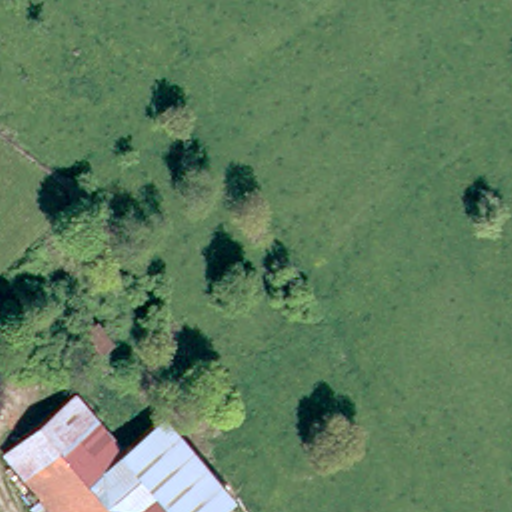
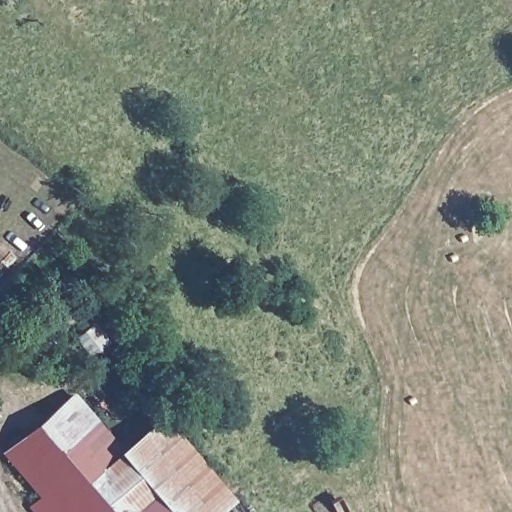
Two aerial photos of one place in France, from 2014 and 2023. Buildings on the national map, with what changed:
unchanged [(84,312),(88,309),(100,324),(103,326),(99,330),(85,342),(82,340),(70,325),(84,312)]
unchanged [(47,512),(0,457),(0,454),(67,397),(117,455),(167,512),(47,512)]
unchanged [(222,497),(206,512),(167,512),(117,455),(157,420),(222,497)]

